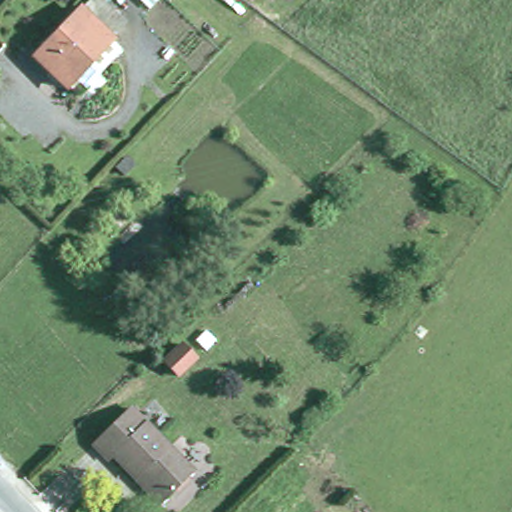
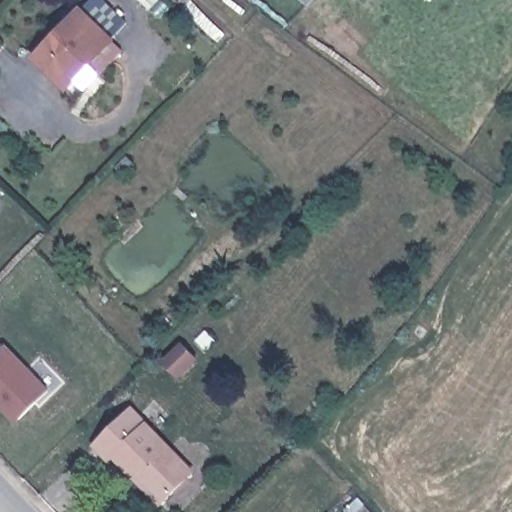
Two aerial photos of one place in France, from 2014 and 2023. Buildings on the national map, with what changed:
unchanged [(110,79),(98,67),(75,93),(42,62),(86,15),(98,4),(130,34),(117,46),(129,58),(110,79)]
new [(182,344),(197,358),(179,376),(165,361),(182,344)]
new [(6,346),(50,391),(20,420),(0,400),(0,352),(6,346)]
unchanged [(112,460),(96,443),(133,407),(196,472),(164,503),(117,455),(112,460)]

